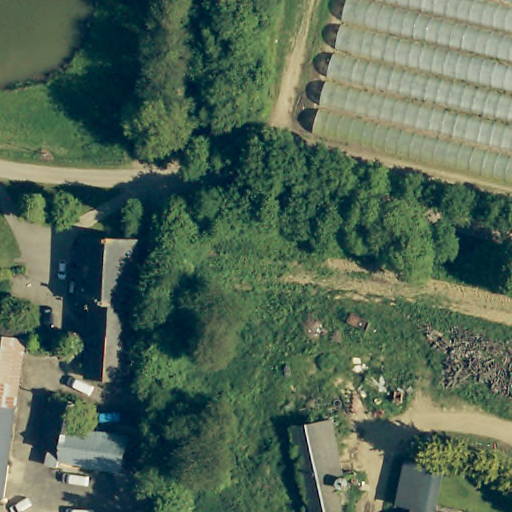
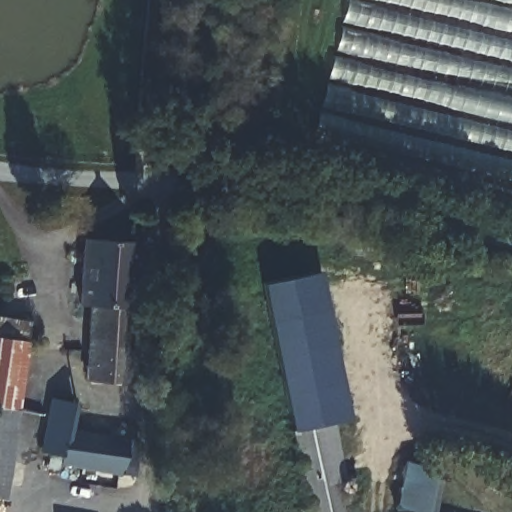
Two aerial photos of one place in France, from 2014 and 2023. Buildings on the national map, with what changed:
unchanged [(349,0),(512,0),(512,180),(313,133),(349,0)]
unchanged [(137,245),(132,380),(90,376),(95,305),(82,301),(87,242),(137,245)]
new [(335,424),(291,432),(260,283),(322,270),(353,418),(335,424)]
unchanged [(0,495),(0,494),(0,338),(25,343),(0,495)]
unchanged [(87,405),(85,432),(133,437),(135,454),(137,469),(67,460),(64,453),(46,451),(50,402),(87,405)]
unchanged [(348,484),(337,487),(343,512),(340,512),(305,512),(285,434),(335,424),(348,484)]
unchanged [(434,471),(424,512),(395,512),(406,464),(434,471)]

